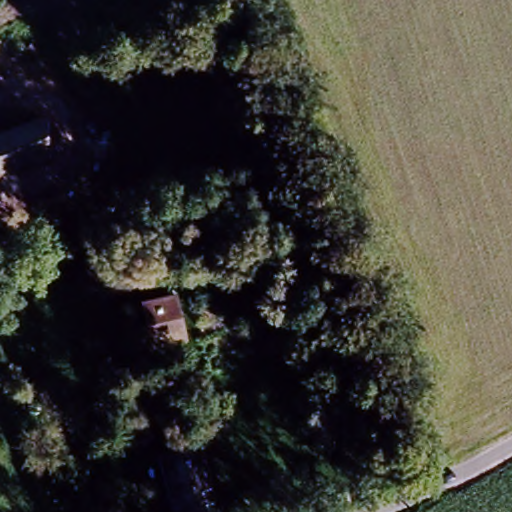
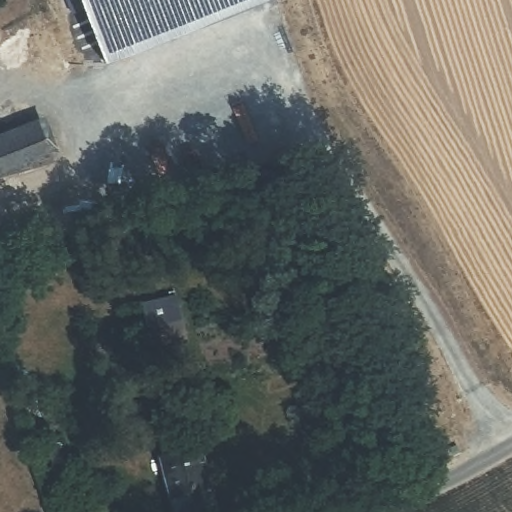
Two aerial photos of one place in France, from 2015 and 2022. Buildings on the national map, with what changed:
new [(83,0),(269,0),(108,65),(83,0)]
unchanged [(0,175),(0,139),(34,125),(47,157),(0,175)]
unchanged [(151,352),(141,306),(177,296),(188,340),(151,352)]
unchanged [(198,449),(213,509),(221,508),(221,512),(167,512),(154,460),(198,449)]

